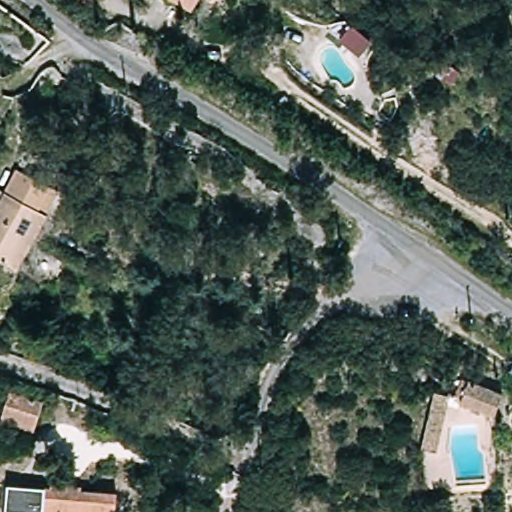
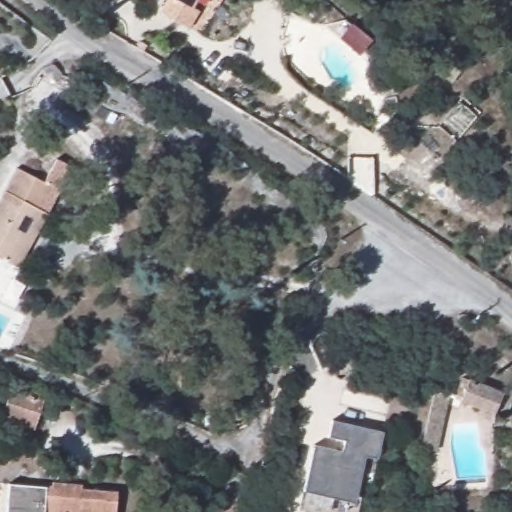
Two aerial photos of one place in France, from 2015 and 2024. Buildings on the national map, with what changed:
unchanged [(76,0),(97,0),(94,9),(76,0)]
unchanged [(175,0),(196,0),(191,9),(175,0)]
unchanged [(2,191),(4,193),(16,170),(59,191),(17,269),(0,260),(0,191),(2,191)]
unchanged [(495,417),(457,402),(465,380),(504,395),(495,417)]
unchanged [(9,391),(43,401),(34,431),(1,421),(9,391)]
unchanged [(422,449),(435,395),(446,398),(433,451),(422,449)]
new [(376,460),(365,458),(354,503),(304,492),(314,446),(342,452),(345,440),(328,437),(332,422),(382,434),(376,460)]
unchanged [(50,488),(50,487),(55,487),(56,483),(87,486),(86,490),(121,493),(119,512),(11,512),(12,486),(50,488)]

